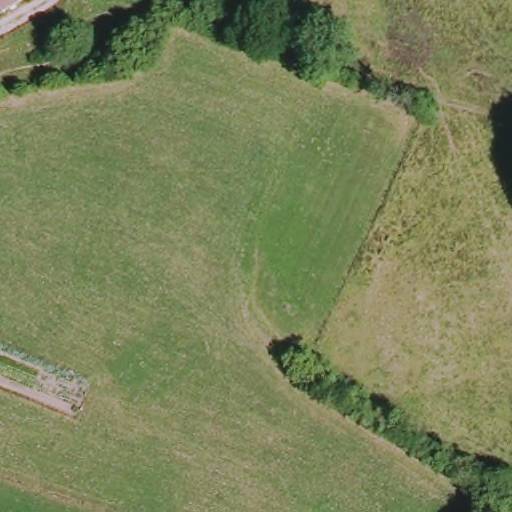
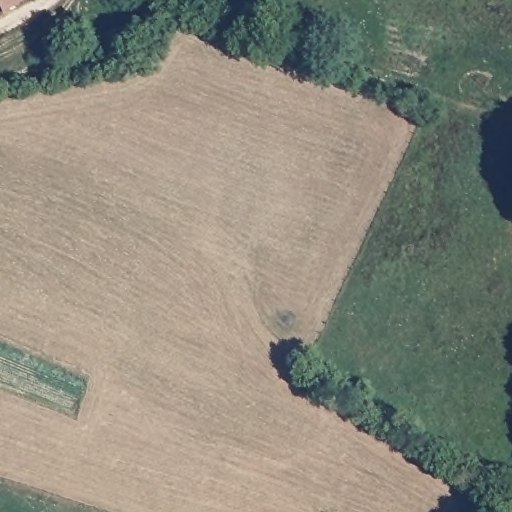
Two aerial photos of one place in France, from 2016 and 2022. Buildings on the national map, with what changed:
unchanged [(0,14),(0,0),(28,0),(32,5),(3,20),(0,14)]

